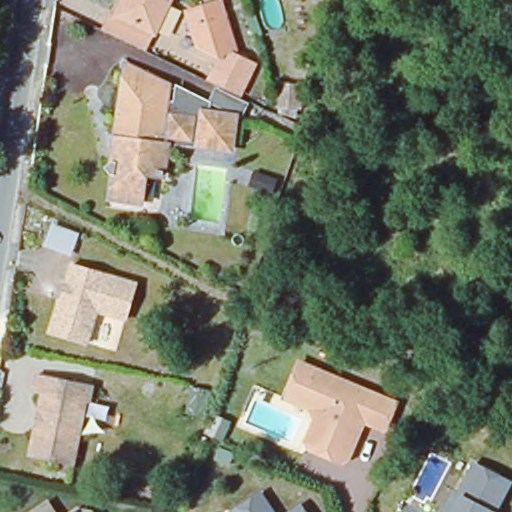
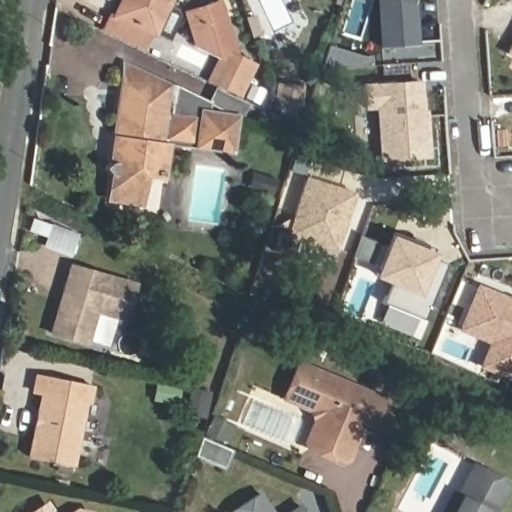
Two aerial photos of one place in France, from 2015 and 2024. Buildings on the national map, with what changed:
unchanged [(157,34),(117,16),(125,0),(173,0),(157,34)]
unchanged [(244,97),(207,80),(217,57),(197,47),(186,9),(217,0),(223,0),(240,56),(257,64),(244,97)]
new [(410,1),(414,43),(375,47),(372,0),(410,0),(410,1)]
new [(512,39),(512,58),(504,53),(512,39)]
unchanged [(113,129),(126,58),(170,81),(171,111),(198,113),(200,107),(236,111),(232,148),(196,147),(197,142),(166,139),(165,148),(171,149),(167,179),(150,176),(146,206),(114,202),(116,179),(115,179),(109,171),(117,165),(120,132),(113,129)]
new [(415,81),(416,111),(421,111),(424,155),(377,158),(374,105),(362,106),(361,84),(415,81)]
unchanged [(278,83),(306,86),(302,112),(275,108),(278,83)]
new [(353,193),(336,248),(289,234),(306,178),(353,193)]
new [(389,282),(375,276),(378,270),(393,233),(433,250),(430,259),(446,266),(422,322),(380,304),(392,276),(389,282)]
unchanged [(140,288),(127,323),(99,314),(89,345),(53,334),(64,301),(69,288),(76,267),(140,288)]
new [(475,287),(512,302),(512,376),(511,378),(479,365),(489,341),(458,328),(475,287)]
unchanged [(283,401),(297,366),(313,373),(393,405),(383,432),(362,423),(347,461),(340,464),(308,451),(305,445),(315,420),(313,413),(299,408),(283,401)]
unchanged [(46,395),(39,393),(42,375),(96,386),(94,403),(90,402),(77,466),(34,457),(46,395)]
unchanged [(212,430),(231,438),(224,456),(205,449),(212,430)]
unchanged [(455,500),(473,466),(508,484),(494,512),(443,512),(450,498),(455,500)]
unchanged [(271,512),(232,512),(260,495),(271,512)]
unchanged [(58,512),(39,512),(51,503),(58,512)]
unchanged [(94,510),(94,512),(75,512),(81,507),(94,510)]
unchanged [(302,512),(295,512),(300,509),(302,512)]

